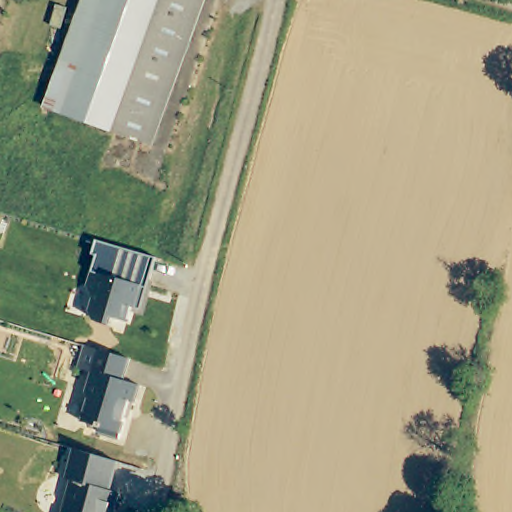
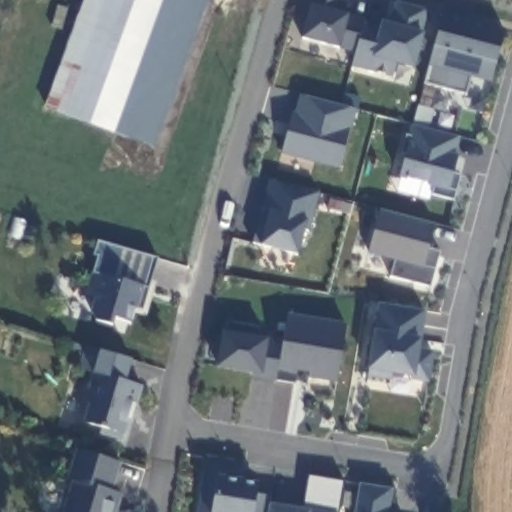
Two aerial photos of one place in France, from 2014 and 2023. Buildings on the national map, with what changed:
unchanged [(46,107),(84,0),(207,0),(153,146),(46,107)]
new [(352,51),(302,37),(312,2),(313,0),(340,0),(337,11),(348,15),(347,19),(378,28),(380,19),(390,22),(394,0),(426,9),(422,33),(414,68),(395,64),(391,77),(351,65),(352,51)]
new [(422,82),(441,10),(503,26),(489,82),(470,77),(465,95),(422,82)]
new [(280,153),(292,109),(295,110),(299,95),(355,109),(337,169),(280,153)]
new [(430,193),(431,185),(398,176),(417,105),(434,109),(428,130),(459,137),(451,173),(460,175),(454,199),(430,193)]
new [(309,230),(304,230),(300,252),(258,243),(251,241),(267,179),(318,193),(309,230)]
new [(389,276),(394,260),(369,253),(379,210),(436,224),(428,248),(440,251),(430,287),(389,276)]
unchanged [(124,246),(157,256),(143,307),(134,304),(130,320),(114,316),(112,323),(95,319),(91,311),(95,298),(87,285),(96,254),(92,253),(96,239),(124,246)]
new [(366,368),(373,329),(378,303),(426,310),(420,347),(433,350),(428,383),(411,380),(411,375),(391,373),(390,380),(366,376),(366,368)]
new [(335,383),(307,378),(308,372),(296,371),(293,384),(251,377),(253,371),(213,366),(221,328),(225,329),(225,320),(257,325),(256,336),(283,340),(287,312),(345,322),(335,383)]
unchanged [(124,379),(141,384),(137,401),(132,400),(122,437),(100,431),(102,425),(83,421),(90,398),(86,393),(99,348),(121,354),(130,357),(124,379)]
unchanged [(111,488),(121,491),(116,507),(111,511),(111,512),(64,512),(72,479),(67,478),(75,448),(119,459),(111,488)]
new [(208,458),(247,465),(244,481),(258,483),(256,495),(273,496),(272,503),(303,508),(308,474),(344,481),(339,512),(200,512),(208,458)]
new [(359,483),(397,489),(393,512),(356,512),(359,483)]

